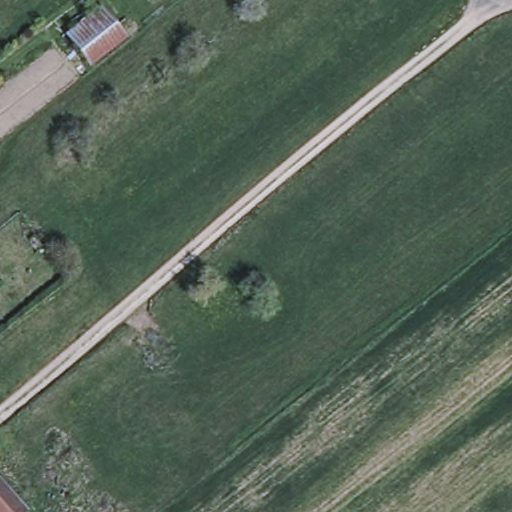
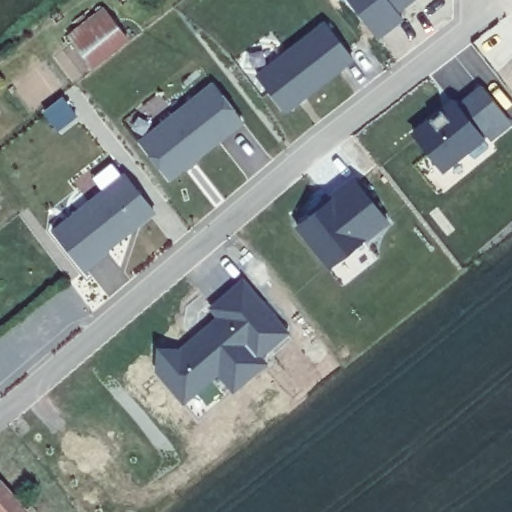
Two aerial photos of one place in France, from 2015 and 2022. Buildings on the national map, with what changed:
unchanged [(102,7),(126,38),(91,65),(67,35),(102,7)]
new [(352,58),(285,109),(257,75),(325,23),(352,58)]
new [(212,86),(240,121),(168,179),(141,142),(212,86)]
new [(510,122),(490,140),(485,133),(442,167),(415,133),(452,104),(455,107),(480,86),(510,122)]
new [(125,177),(153,212),(105,250),(107,253),(81,271),(53,231),(125,177)]
new [(388,220),(328,265),(296,225),(355,178),(388,220)]
new [(284,332),(255,356),(212,309),(241,285),(284,332)]
unchanged [(0,512),(0,485),(25,512),(0,512)]

